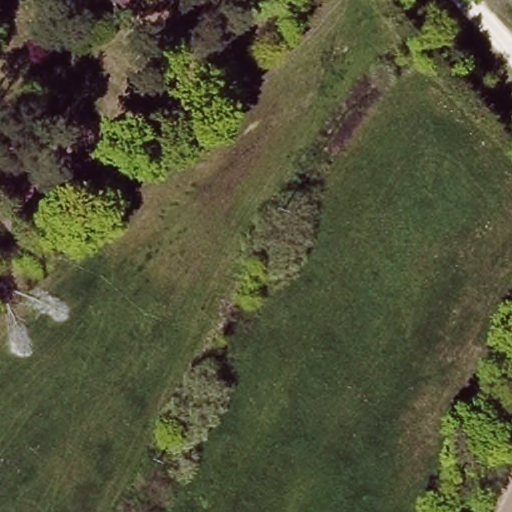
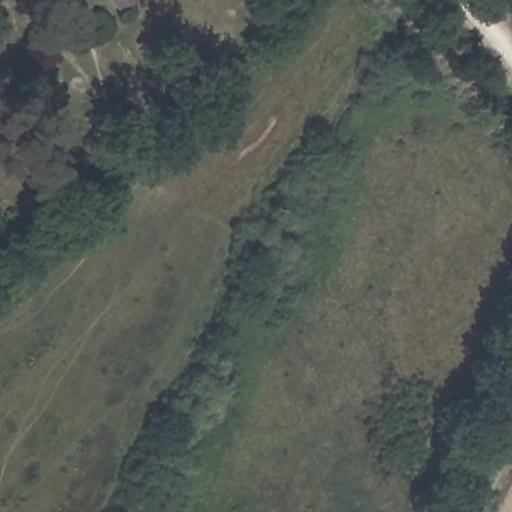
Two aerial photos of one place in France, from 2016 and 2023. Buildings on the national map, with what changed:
unchanged [(120,0),(125,0),(122,2),(120,0)]

